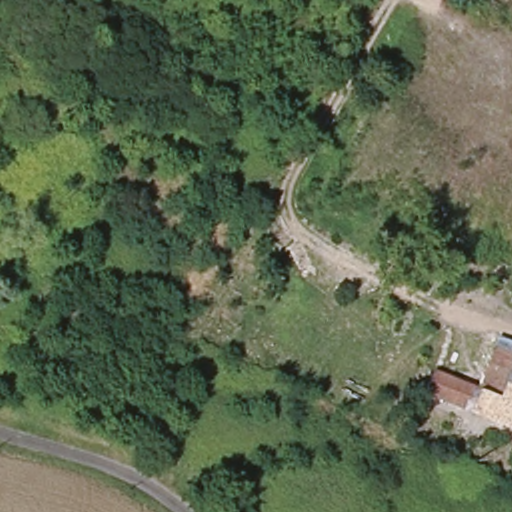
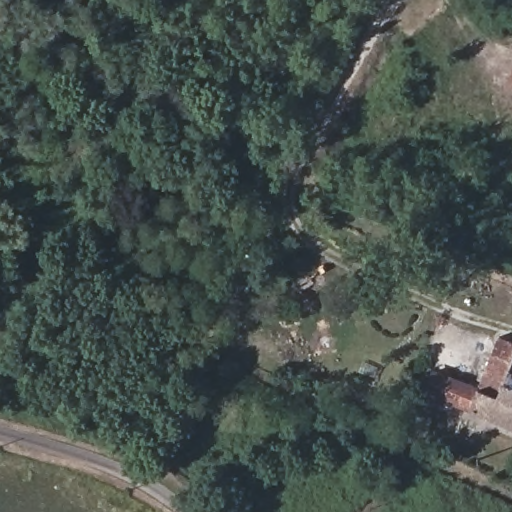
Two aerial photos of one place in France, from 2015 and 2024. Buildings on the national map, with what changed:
unchanged [(424,392),(433,371),(476,388),(499,337),(512,342),(512,426),(424,392)]

